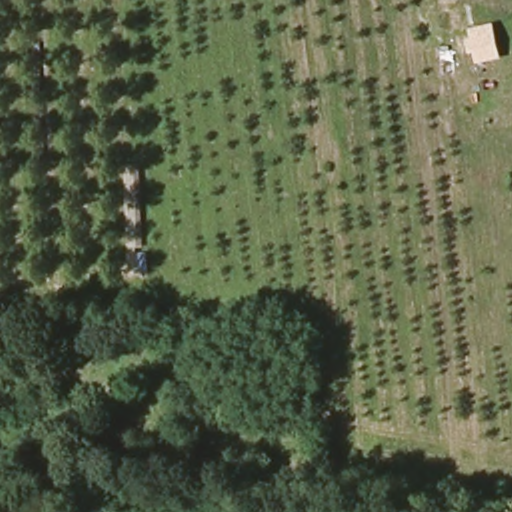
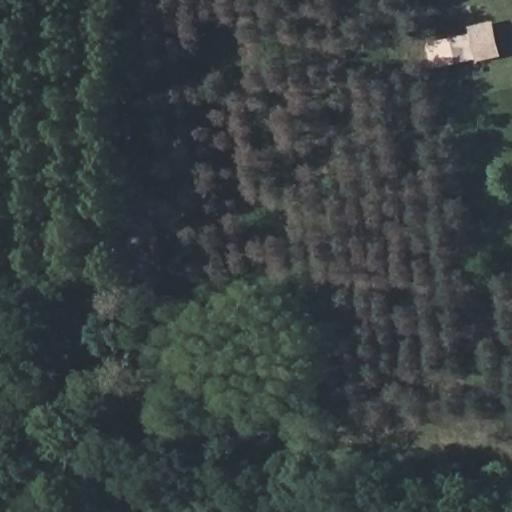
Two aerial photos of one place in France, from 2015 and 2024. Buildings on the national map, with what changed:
unchanged [(501,58),(476,64),(468,29),(494,23),(501,58)]

